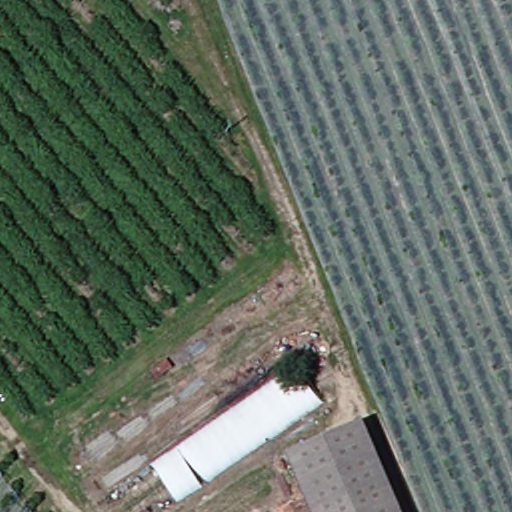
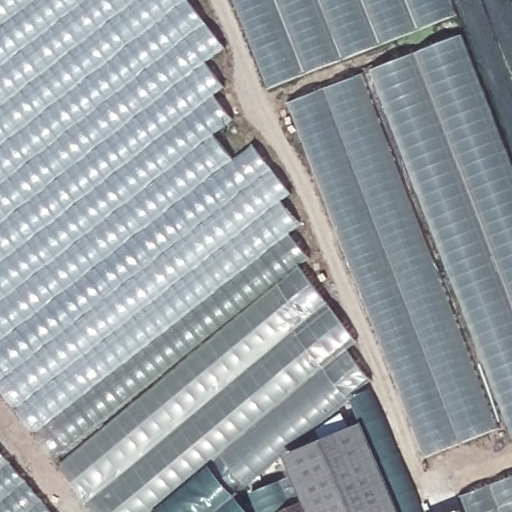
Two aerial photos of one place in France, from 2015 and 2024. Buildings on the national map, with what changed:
new [(207,62),(225,86),(215,95),(234,119),(215,134),(235,159),(254,144),(291,193),(281,201),(300,225),(290,234),(308,256),(53,459),(0,390),(0,0),(190,0),(226,47),(207,62)]
new [(237,0),(453,0),(459,15),(270,87),(237,0)]
new [(464,33),(512,159),(512,429),(373,68),(464,33)]
new [(291,101),(364,73),(499,427),(428,455),(291,101)]
new [(62,464),(302,266),(360,341),(350,349),(374,380),(238,494),(253,512),(99,512),(62,464)]
demolished [(116,493),(301,369),(325,403),(166,512),(131,512),(116,493)]
new [(307,502),(287,455),(364,422),(403,512),(312,512),(307,502)]
new [(0,451),(52,512),(0,512),(0,451)]
new [(463,495),(512,477),(512,512),(470,512),(463,495)]
new [(307,502),(312,512),(285,512),(307,502)]
new [(461,509),(462,512),(454,512),(461,509)]

